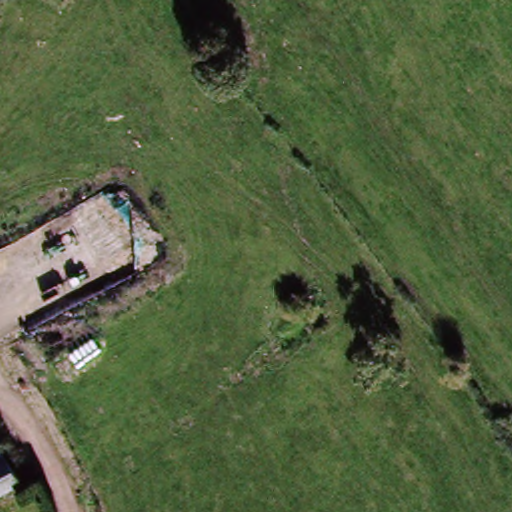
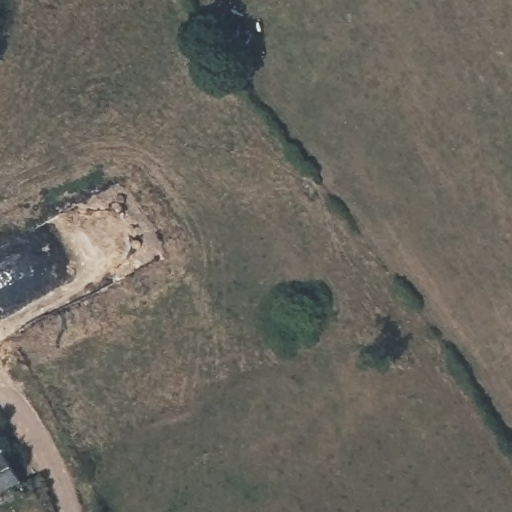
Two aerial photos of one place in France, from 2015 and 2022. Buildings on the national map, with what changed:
unchanged [(16,512),(7,512),(2,506),(0,507),(0,455),(27,506),(16,512)]

